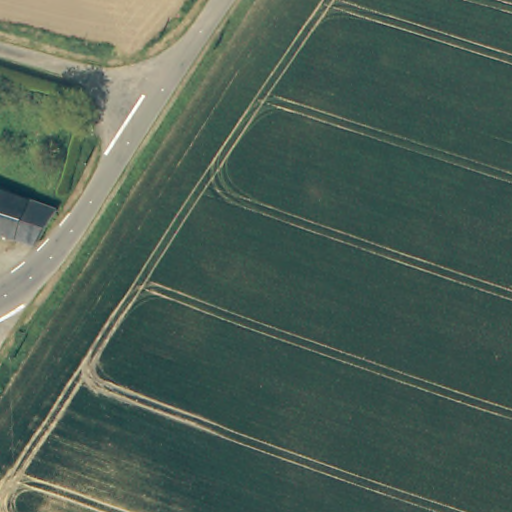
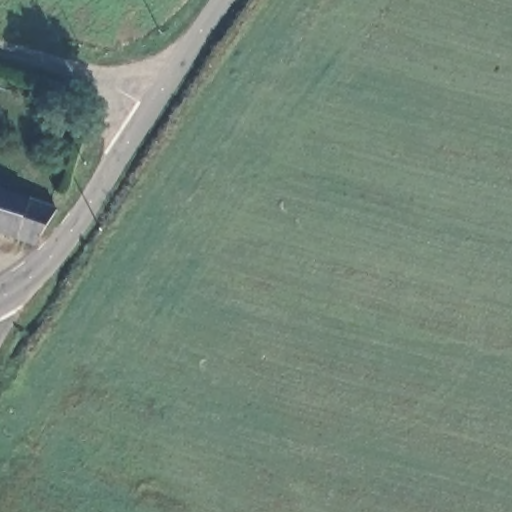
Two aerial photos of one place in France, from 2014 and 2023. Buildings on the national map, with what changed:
unchanged [(39,230),(31,236),(0,226),(0,182),(55,202),(39,230)]

